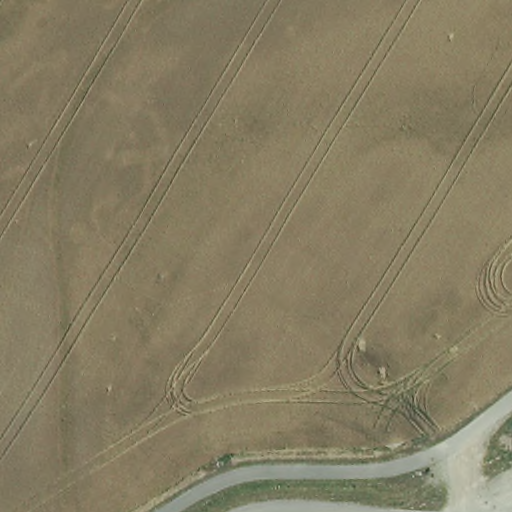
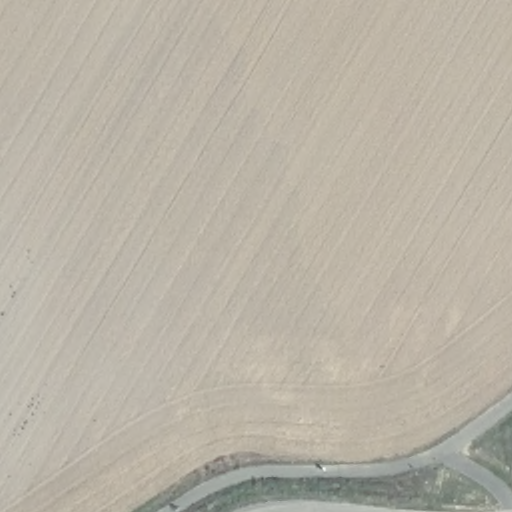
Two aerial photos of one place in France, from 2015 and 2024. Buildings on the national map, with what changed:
[]

